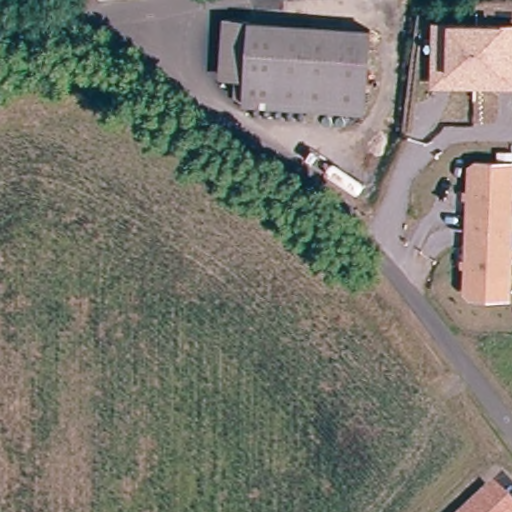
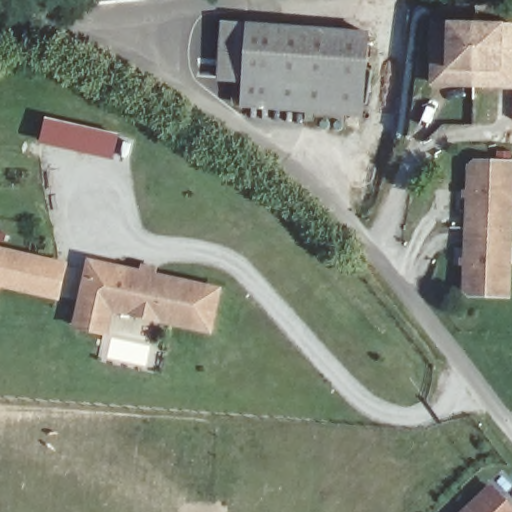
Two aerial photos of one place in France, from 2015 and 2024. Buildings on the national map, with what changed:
unchanged [(369,116),(248,107),(249,85),(224,84),(228,24),(374,34),(369,116)]
unchanged [(449,24),(505,24),(512,24),(512,90),(430,87),(432,24),(449,24)]
new [(121,135),(116,161),(40,145),(46,119),(121,135)]
unchanged [(482,161),(512,163),(512,296),(475,295),(471,290),(478,165),(482,161)]
new [(61,302),(1,288),(0,296),(0,248),(70,263),(61,302)]
new [(88,259),(141,269),(142,264),(159,268),(159,274),(224,287),(214,335),(115,315),(110,337),(73,330),(88,259)]
unchanged [(510,512),(465,512),(488,490),(510,512)]

